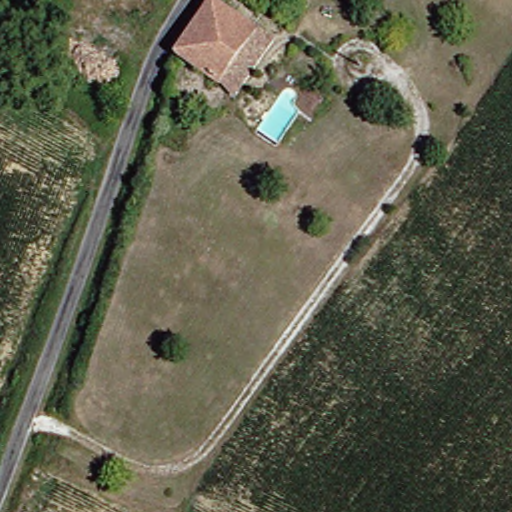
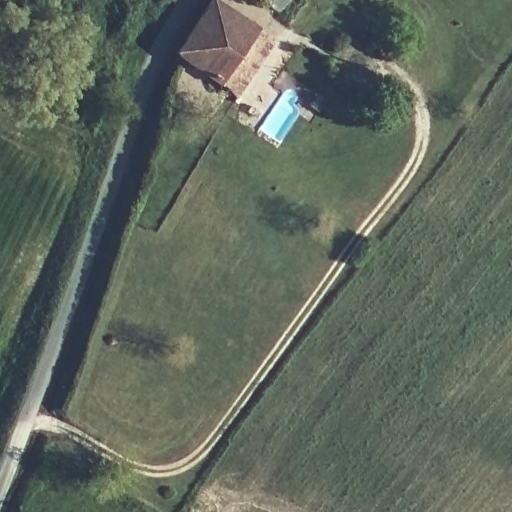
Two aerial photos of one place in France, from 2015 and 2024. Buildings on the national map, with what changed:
unchanged [(174,0),(171,4),(166,0),(174,0)]
unchanged [(264,0),(284,0),(276,10),(264,0)]
unchanged [(239,94),(228,88),(179,60),(211,2),(260,30),(270,35),(239,94)]

